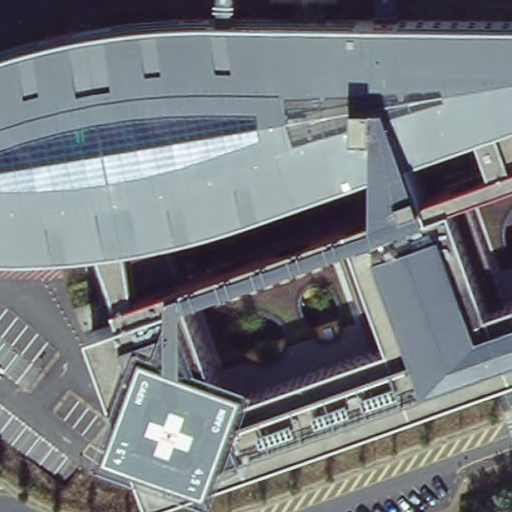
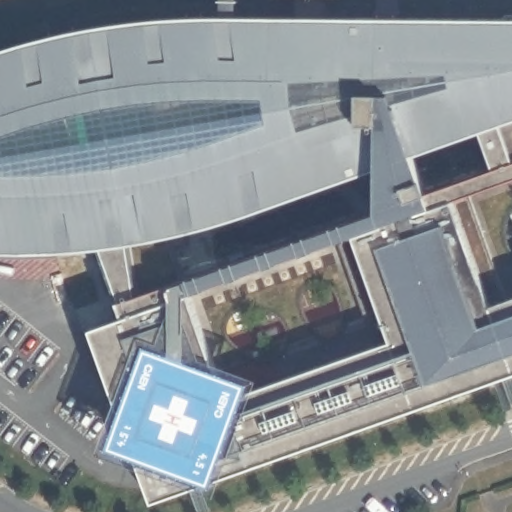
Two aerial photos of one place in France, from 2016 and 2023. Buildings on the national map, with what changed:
unchanged [(36,39),(101,25),(147,19),(296,17),(512,21),(512,181),(460,203),(493,304),(512,297),(512,374),(213,480),(208,494),(198,491),(152,507),(136,466),(107,456),(124,422),(92,333),(125,318),(102,248),(46,253),(0,252),(0,52),(36,39)]

